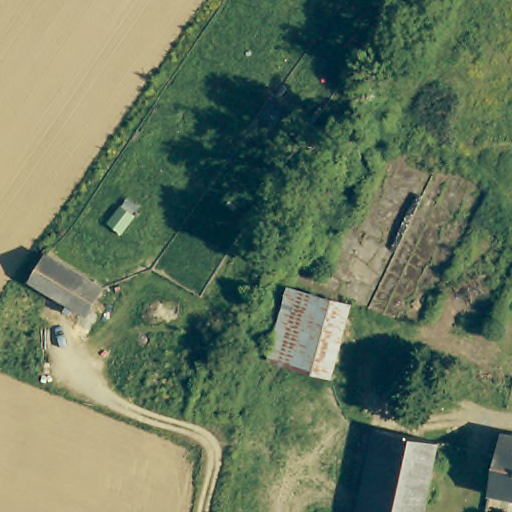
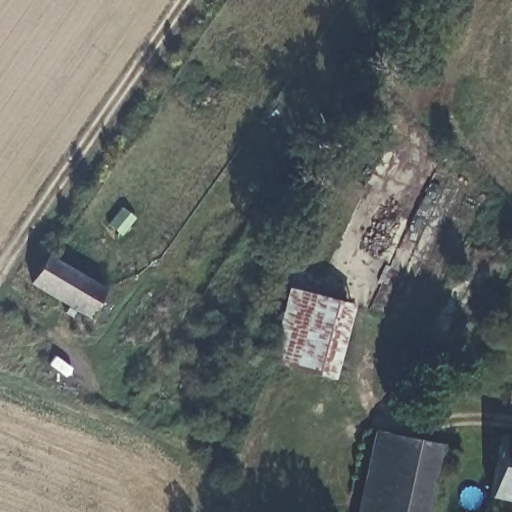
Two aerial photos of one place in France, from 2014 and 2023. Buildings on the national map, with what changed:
unchanged [(64,265),(101,287),(94,297),(83,317),(24,279),(40,250),(64,265)]
unchanged [(346,302),(327,375),(258,355),(278,285),(346,302)]
unchanged [(421,512),(363,512),(377,430),(433,438),(421,512)]
unchanged [(512,493),(490,490),(500,440),(512,443),(512,493)]

